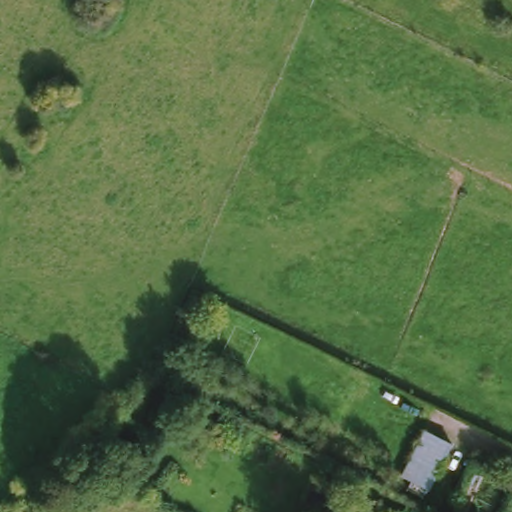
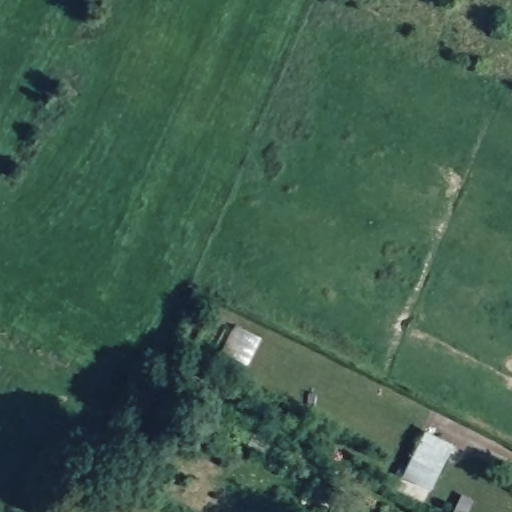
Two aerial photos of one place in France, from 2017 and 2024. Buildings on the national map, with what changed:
unchanged [(432,487),(424,482),(413,504),(393,494),(421,436),(450,449),(432,487)]

